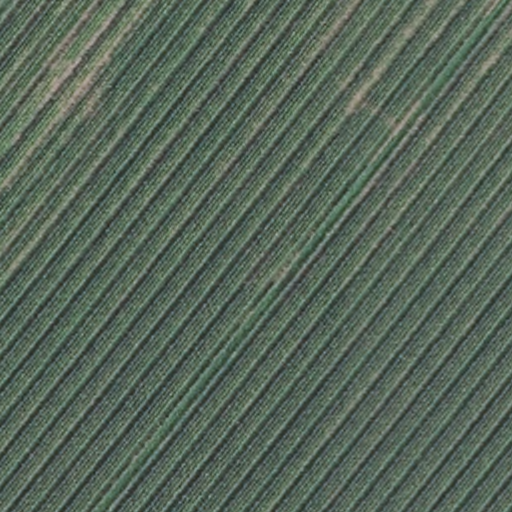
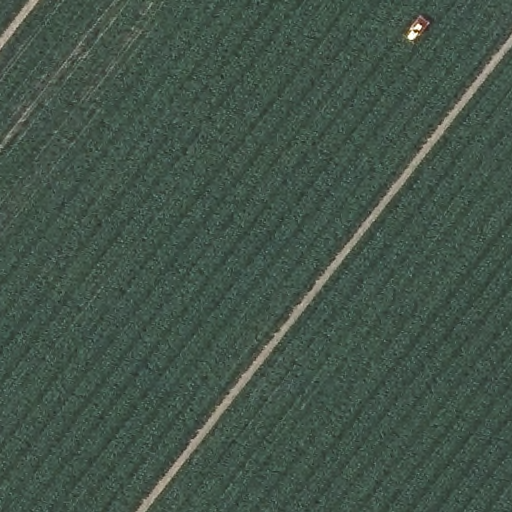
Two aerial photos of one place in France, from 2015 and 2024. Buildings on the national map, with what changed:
[]

